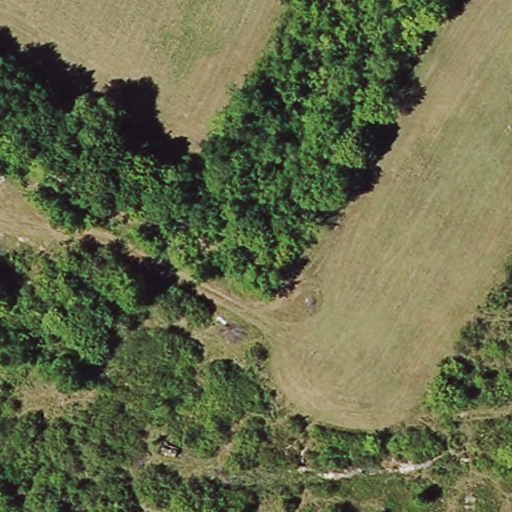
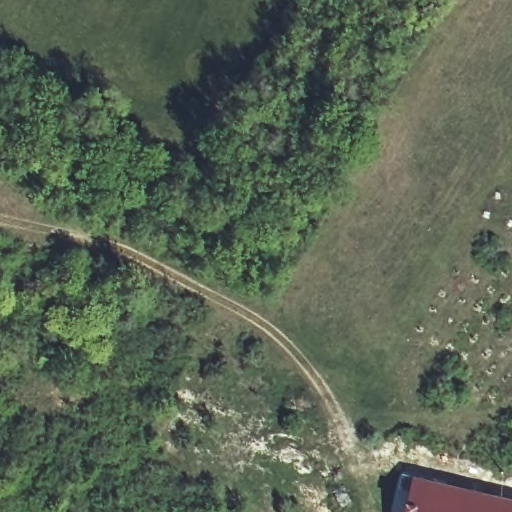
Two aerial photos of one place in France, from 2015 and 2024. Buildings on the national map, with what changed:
new [(512,501),(512,512),(402,512),(410,477),(512,501)]

